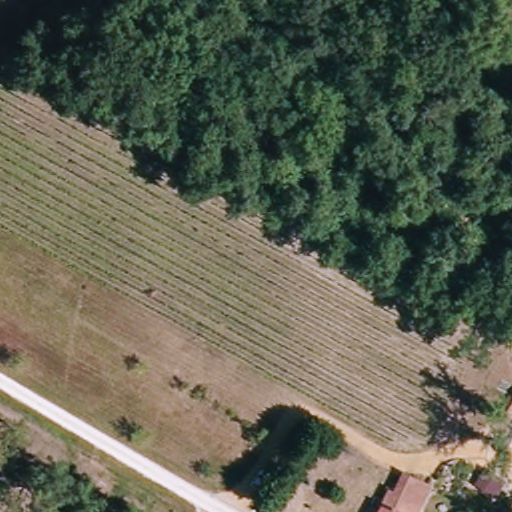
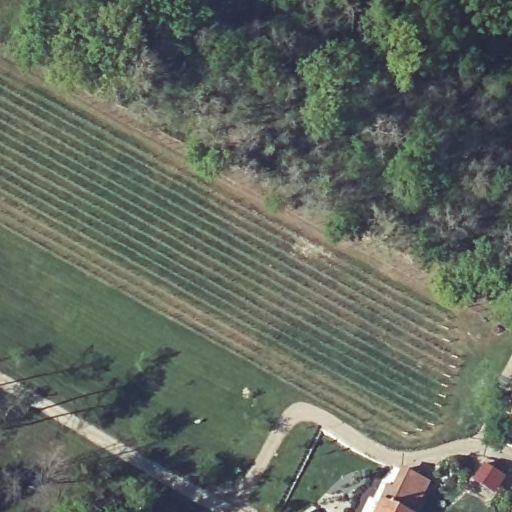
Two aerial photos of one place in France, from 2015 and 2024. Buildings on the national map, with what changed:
unchanged [(502,411),(512,393),(512,416),(502,411)]
unchanged [(388,482),(395,466),(423,478),(416,496),(409,512),(371,512),(384,480),(388,482)]

